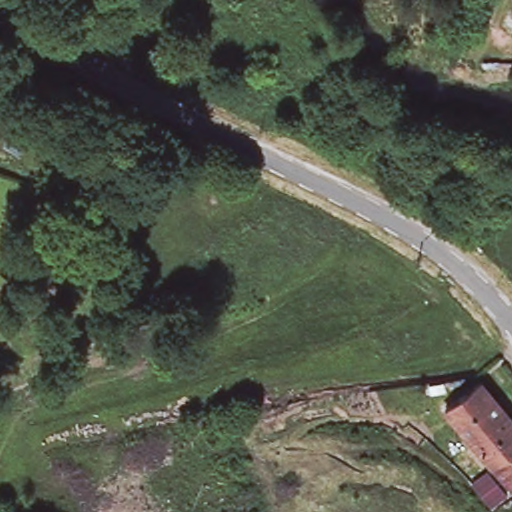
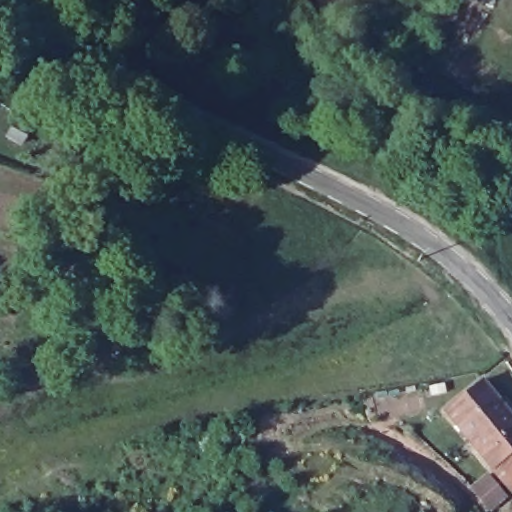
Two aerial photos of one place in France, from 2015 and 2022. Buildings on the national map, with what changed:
unchanged [(473,378),(512,421),(512,448),(492,467),(438,409),(473,378)]
unchanged [(512,448),(512,488),(511,489),(492,467),(512,448)]

